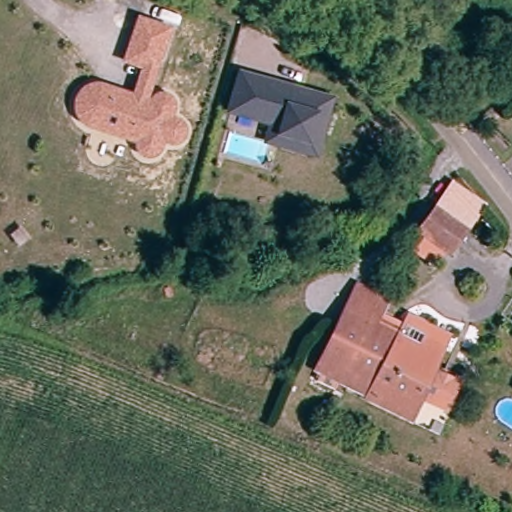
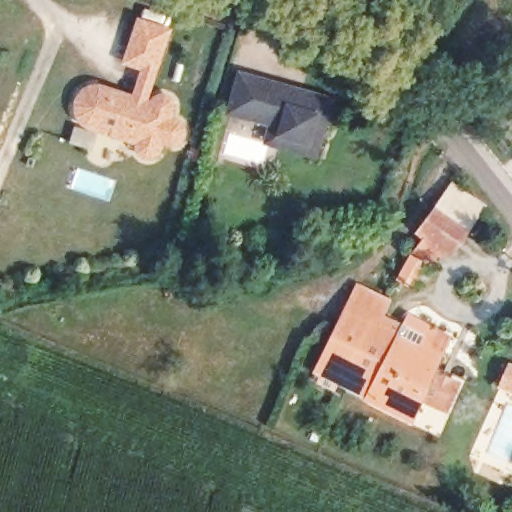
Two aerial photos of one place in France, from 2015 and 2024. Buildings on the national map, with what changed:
unchanged [(150,99),(156,94),(161,92),(167,93),(174,97),(177,102),(177,109),(174,118),(180,118),(187,126),(187,135),(182,142),(175,146),(167,144),(163,152),(157,156),(150,159),(144,159),(140,154),(136,145),(90,129),(80,120),(75,111),(74,101),(80,91),(92,84),(101,84),(132,94),(141,69),(122,62),(138,18),(172,27),(150,99)]
unchanged [(272,140),(277,121),(234,110),(244,75),(297,89),(332,97),(330,104),(322,131),(317,152),(272,140)]
unchanged [(478,232),(458,255),(419,223),(441,199),(478,232)]
unchanged [(313,377),(354,287),(388,300),(379,323),(441,351),(410,419),(372,402),(313,377)]
new [(512,365),(512,394),(497,387),(507,363),(512,365)]

